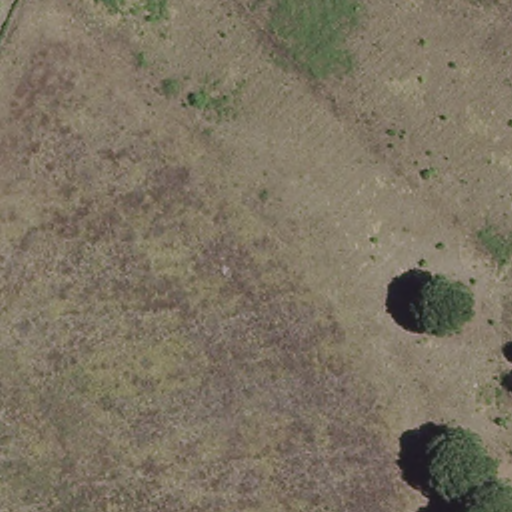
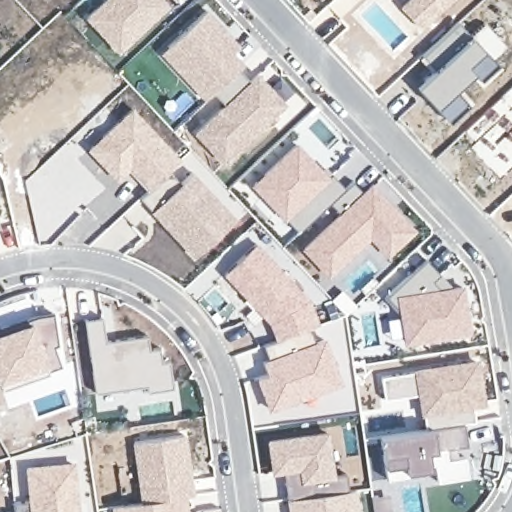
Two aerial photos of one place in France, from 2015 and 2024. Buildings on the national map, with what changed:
new [(86,17),(104,0),(167,0),(170,4),(120,52),(86,17)]
new [(399,6),(405,0),(450,0),(421,28),(399,6)]
new [(240,45),(233,52),(244,64),(237,70),(229,78),(215,92),(204,99),(160,51),(205,7),(240,45)]
new [(460,86),(473,102),(452,121),(419,84),(433,72),(420,57),(460,22),(473,36),(486,24),(506,46),(493,57),(503,69),(486,83),(476,72),(460,86)]
new [(225,104),(215,92),(237,70),(248,82),(260,72),(290,104),(225,165),(194,133),(225,104)]
new [(470,145),(474,142),(464,131),(512,85),(512,164),(498,177),(470,145)]
new [(132,106),(181,159),(148,191),(127,170),(116,180),(86,150),(132,106)]
new [(256,187),(297,142),(342,191),(355,181),(362,192),(373,182),(418,230),(390,256),(373,237),(331,277),(303,247),(341,212),(332,202),(300,232),(286,217),(256,187)]
new [(154,211),(195,171),(238,217),(196,256),(154,211)]
new [(261,360),(267,357),(263,345),(275,341),(266,322),(262,325),(251,307),(222,274),(256,242),(304,292),(320,322),(308,328),(314,339),(325,336),(341,382),(267,411),(255,376),(265,372),(261,360)]
new [(466,286),(473,334),(406,344),(400,307),(395,307),(389,297),(430,260),(437,275),(446,273),(450,288),(466,286)]
new [(1,330),(30,318),(51,313),(57,342),(54,343),(60,363),(0,381),(0,330),(1,330)]
new [(106,341),(156,333),(161,369),(171,367),(174,387),(140,393),(140,387),(96,393),(86,319),(103,317),(106,341)]
new [(425,429),(420,394),(387,399),(382,373),(477,358),(487,405),(475,407),(477,421),(465,422),(468,445),(456,447),(457,455),(463,454),(467,477),(435,483),(433,468),(387,476),(381,436),(425,429)]
new [(327,430),(335,473),(345,472),(347,489),(286,497),(282,472),(271,472),(267,438),(327,430)]
new [(185,435),(193,493),(186,496),(140,503),(132,442),(185,435)]
new [(75,462),(80,512),(28,512),(24,466),(75,462)]
new [(347,489),(357,490),(361,512),(288,512),(286,497),(347,489)]
new [(112,507),(186,496),(188,512),(113,512),(112,507)]
new [(14,512),(13,502),(27,501),(29,512),(10,512),(14,512)]

